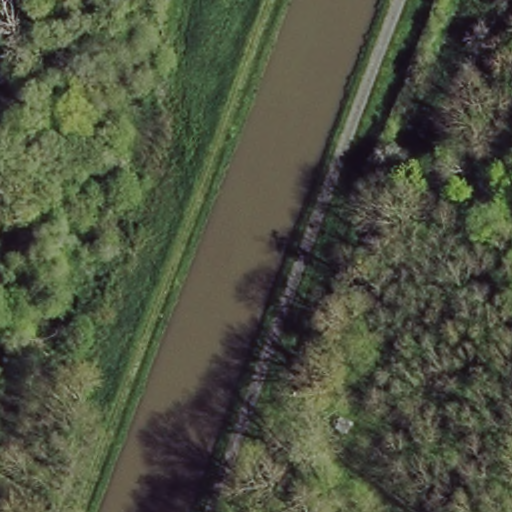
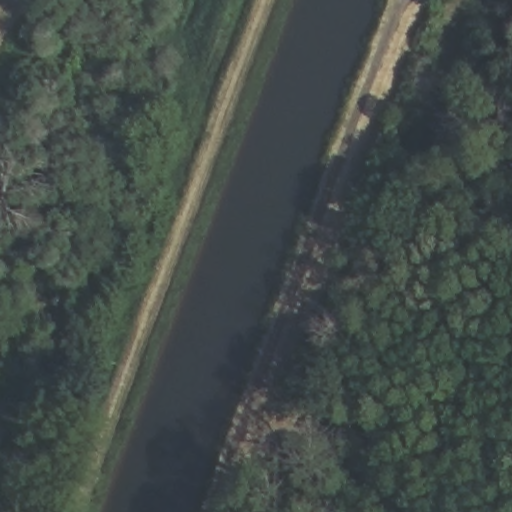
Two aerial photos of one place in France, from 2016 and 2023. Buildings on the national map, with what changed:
unchanged [(331,427),(338,412),(354,419),(347,434),(331,427)]

